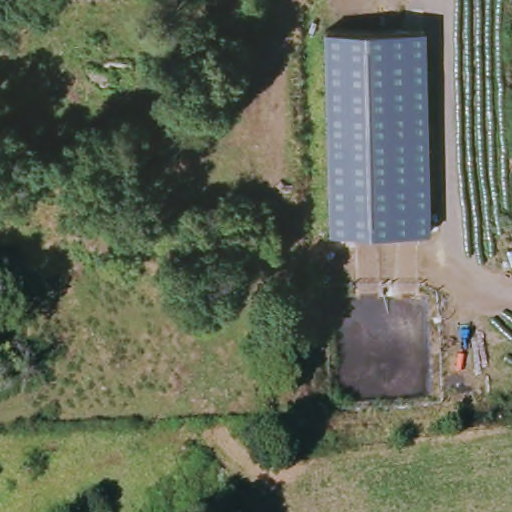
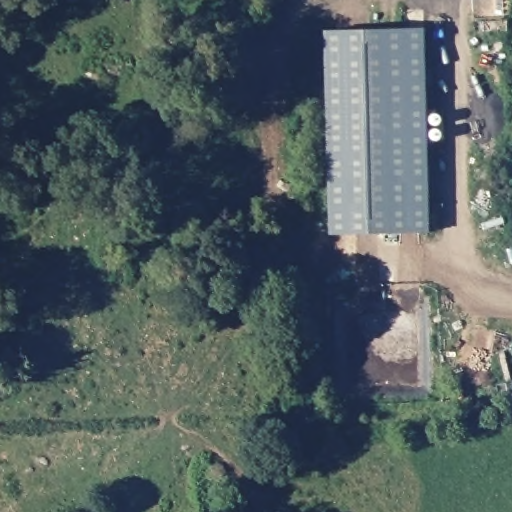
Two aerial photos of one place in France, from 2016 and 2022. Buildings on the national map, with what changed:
unchanged [(430,234),(330,236),(323,33),(425,29),(430,234)]

